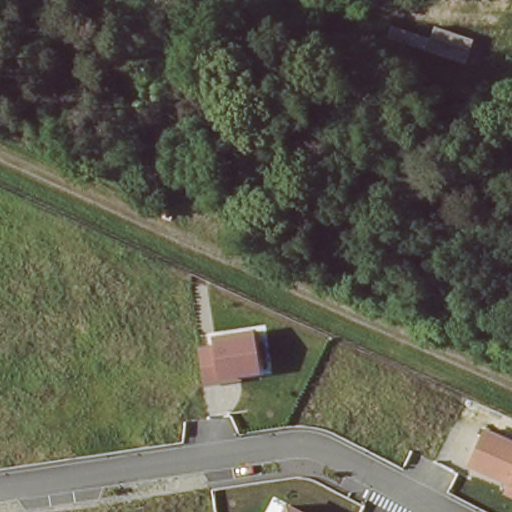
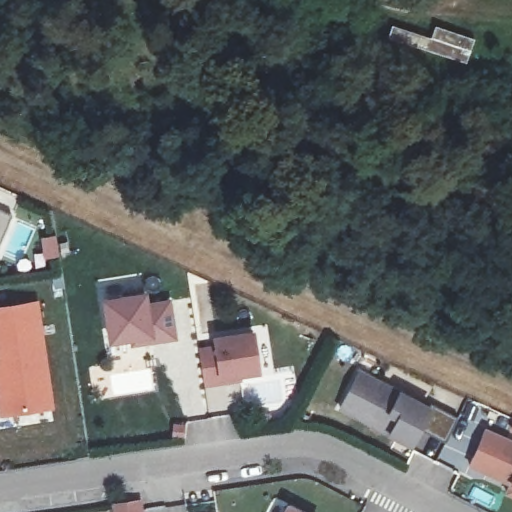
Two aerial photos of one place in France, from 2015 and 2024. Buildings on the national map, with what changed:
new [(431,38),(434,26),(474,38),(467,62),(387,38),(391,25),(431,38)]
new [(0,240),(0,210),(10,214),(0,240)]
new [(145,289),(147,303),(169,299),(176,339),(129,349),(127,340),(105,344),(99,298),(145,289)]
new [(53,408),(0,417),(0,307),(38,300),(53,408)]
unchanged [(211,344),(210,337),(253,331),(258,373),(242,375),(243,383),(204,387),(198,347),(211,344)]
new [(361,363),(372,368),(431,398),(433,394),(460,408),(448,433),(421,419),(413,435),(342,399),(352,380),(361,363)]
unchanged [(512,439),(512,499),(505,496),(511,486),(466,466),(485,427),(512,439)]
unchanged [(286,504),(302,512),(282,512),(286,504)]

